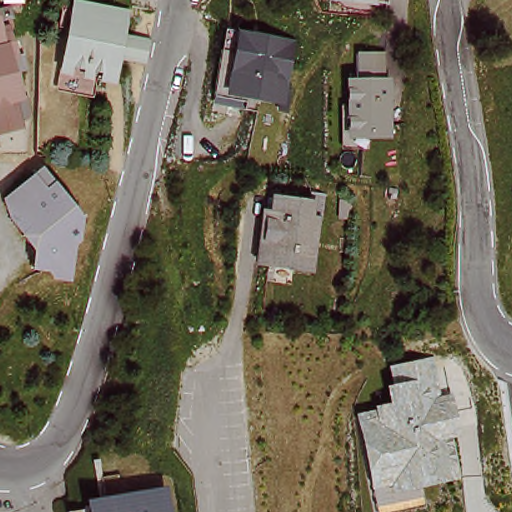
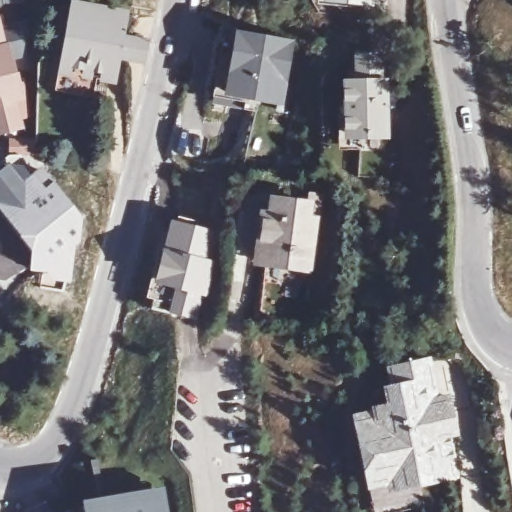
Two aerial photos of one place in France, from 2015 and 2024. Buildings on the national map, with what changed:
unchanged [(326,0),(379,0),(379,3),(361,0),(360,12),(330,8),(326,0)]
unchanged [(125,56),(122,68),(113,66),(110,78),(105,77),(103,86),(59,76),(73,9),(80,10),(123,19),(118,36),(131,39),(152,44),(148,61),(125,56)]
unchanged [(9,45),(12,44),(15,58),(6,60),(9,73),(11,73),(18,99),(13,101),(18,127),(0,131),(0,31),(6,30),(9,45)]
unchanged [(246,52),(250,33),(299,43),(286,101),(267,97),(266,105),(221,96),(231,49),(246,52)]
unchanged [(356,145),(354,95),(362,95),(361,65),(389,65),(391,145),(356,145)]
unchanged [(11,219),(17,214),(5,197),(39,173),(77,220),(74,240),(68,244),(63,273),(33,270),(36,253),(11,219)]
unchanged [(271,220),(274,205),(309,211),(306,225),(314,227),(308,268),(259,260),(266,219),(271,220)]
new [(166,310),(168,304),(144,298),(151,280),(153,280),(171,216),(213,228),(206,258),(213,259),(206,297),(198,320),(166,310)]
unchanged [(350,415),(371,412),(369,406),(385,404),(381,385),(387,384),(384,369),(428,359),(436,398),(449,395),(459,439),(451,440),(459,480),(386,495),(386,488),(366,491),(350,415)]
unchanged [(167,512),(82,512),(81,503),(163,489),(167,512)]

